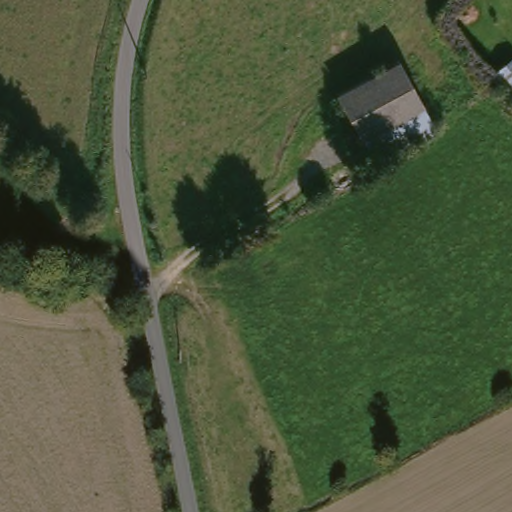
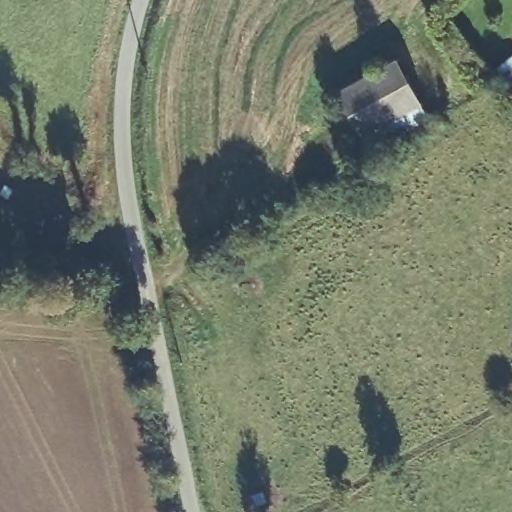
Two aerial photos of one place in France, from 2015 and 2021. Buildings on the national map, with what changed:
unchanged [(440,127),(403,154),(382,164),(345,97),(406,63),(440,127)]
unchanged [(492,81),(512,64),(512,107),(492,81)]
unchanged [(260,268),(213,295),(200,267),(247,244),(260,268)]

